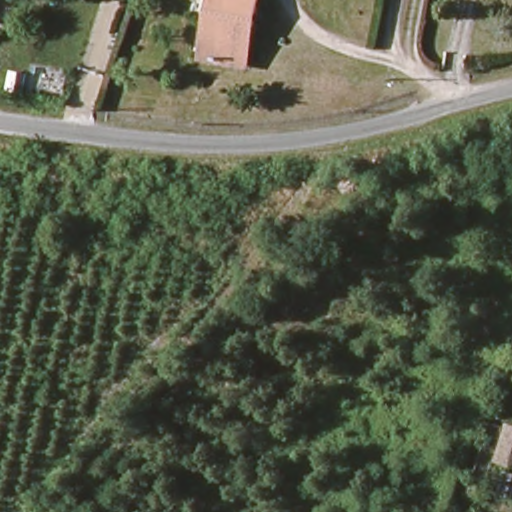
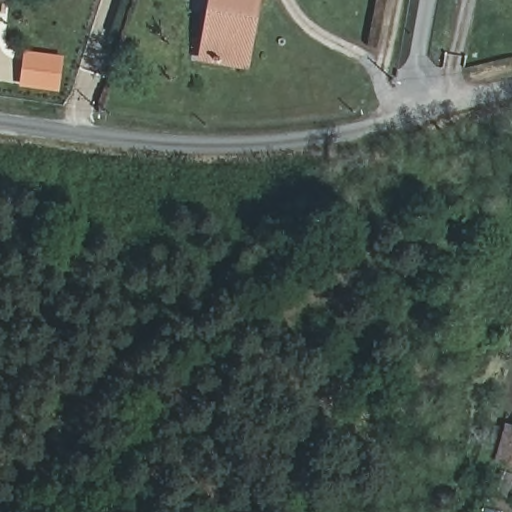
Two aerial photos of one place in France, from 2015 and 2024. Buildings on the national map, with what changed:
unchanged [(200,59),(215,0),(264,0),(246,69),(200,59)]
new [(64,56),(59,91),(19,87),(24,51),(64,56)]
unchanged [(512,467),(492,462),(506,425),(512,427),(512,467)]

